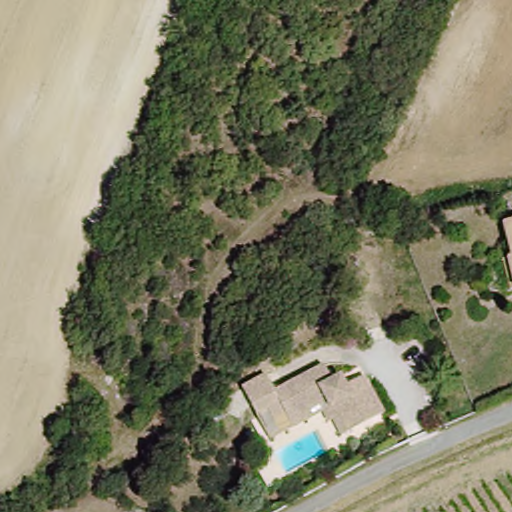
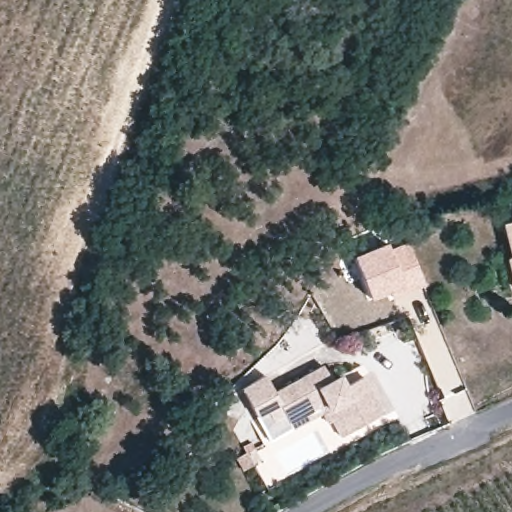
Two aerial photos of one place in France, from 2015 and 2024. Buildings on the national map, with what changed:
unchanged [(506,257),(511,256),(503,223),(512,221),(512,283),(506,257)]
new [(388,241),(390,247),(408,240),(426,284),(397,297),(394,291),(371,300),(353,256),(388,241)]
unchanged [(335,425),(330,426),(324,415),(294,430),(289,422),(287,417),(276,423),(268,411),(257,417),(242,390),(267,378),(276,394),(325,368),(335,383),(343,379),(348,388),(366,379),(386,416),(352,435),(343,440),(335,425)]

